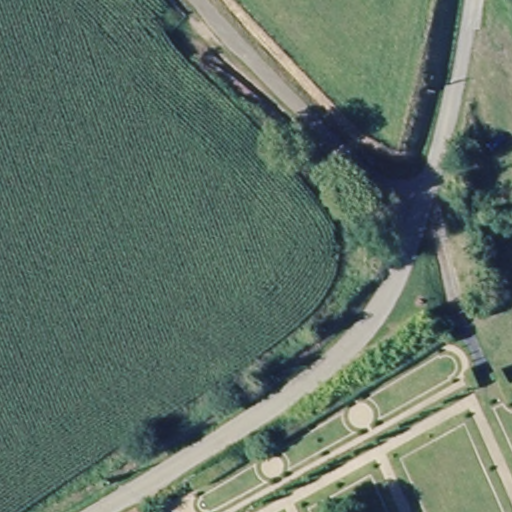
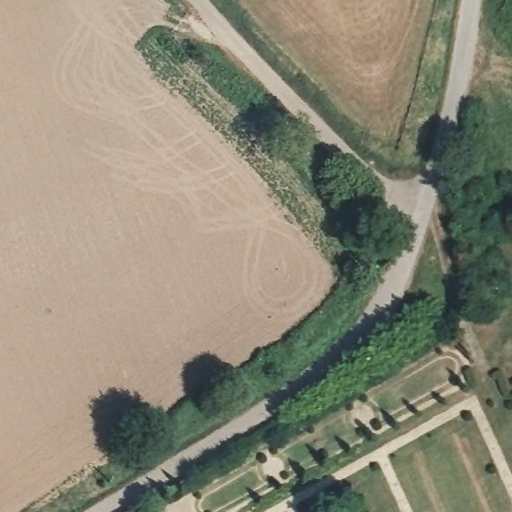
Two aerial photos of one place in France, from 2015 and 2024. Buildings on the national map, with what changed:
unchanged [(139,512),(136,512),(138,511),(139,512)]

